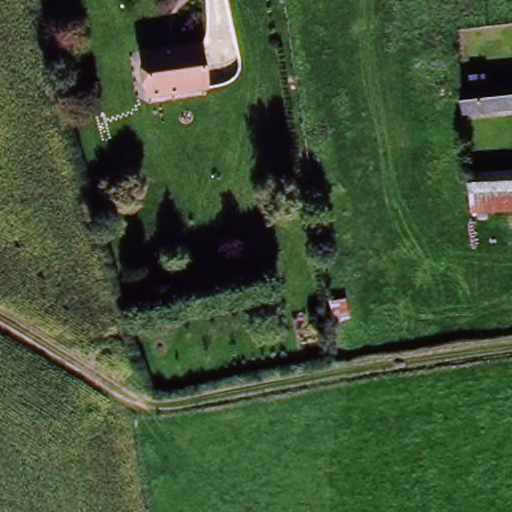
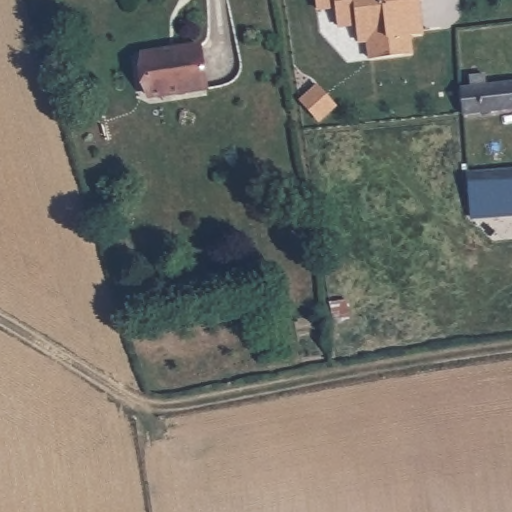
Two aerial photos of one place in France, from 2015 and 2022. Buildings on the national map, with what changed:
new [(412,35),(414,54),(370,62),(367,42),(358,43),(355,27),(336,27),(335,9),(317,11),(316,0),(421,0),(423,36),(412,35)]
unchanged [(203,41),(209,85),(149,92),(144,48),(203,41)]
unchanged [(512,82),(512,109),(465,113),(463,86),(512,82)]
unchanged [(512,166),(512,209),(468,215),(466,168),(512,166)]

